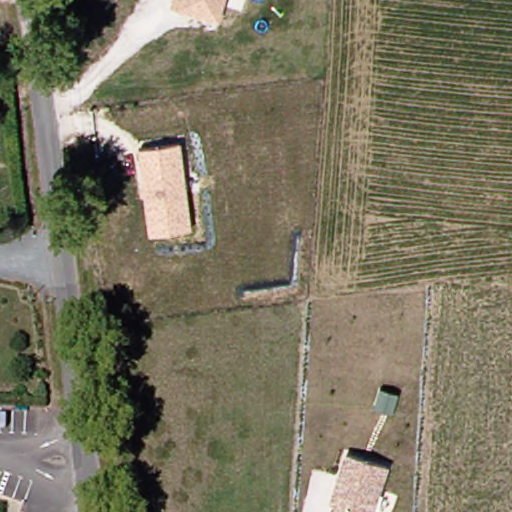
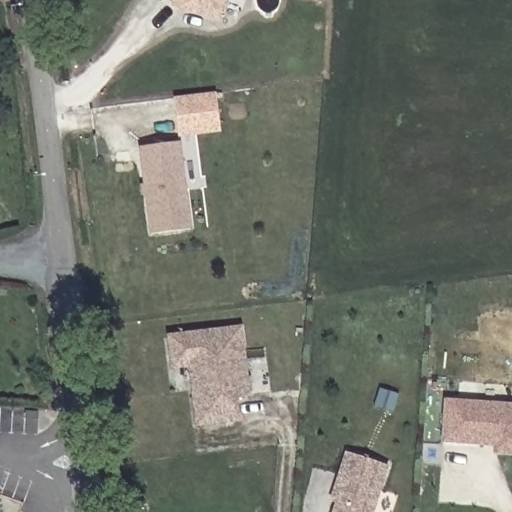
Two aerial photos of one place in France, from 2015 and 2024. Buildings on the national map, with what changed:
unchanged [(173,10),(176,0),(225,0),(219,22),(173,10)]
new [(220,133),(180,138),(173,98),(216,93),(220,133)]
unchanged [(181,141),(194,228),(154,233),(142,147),(181,141)]
new [(189,369),(171,371),(166,335),(243,327),(251,397),(238,398),(240,423),(195,427),(189,369)]
new [(497,443),(443,439),(446,398),(512,402),(512,456),(496,455),(497,443)]
unchanged [(373,512),(335,512),(339,500),(332,498),(346,452),(387,466),(373,512)]

